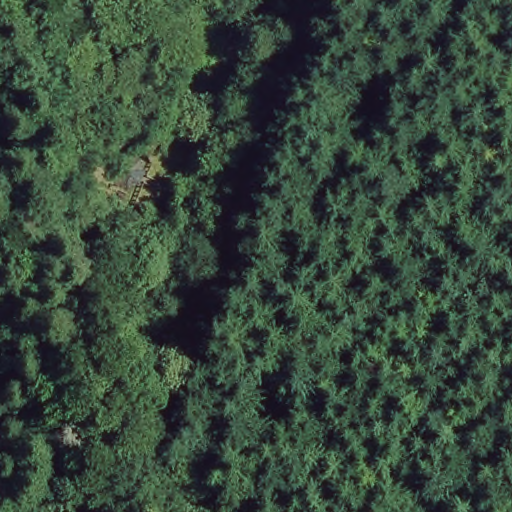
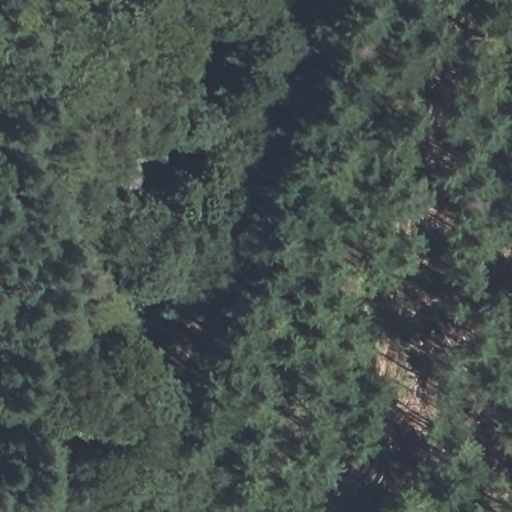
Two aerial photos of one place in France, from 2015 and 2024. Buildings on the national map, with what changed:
unchanged [(142,189),(129,193),(111,187),(122,164),(148,172),(142,189)]

